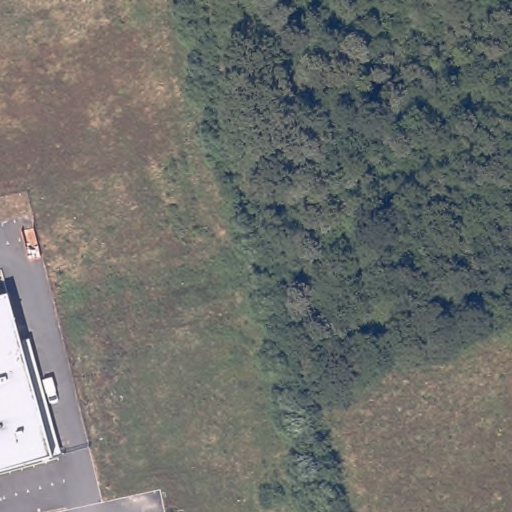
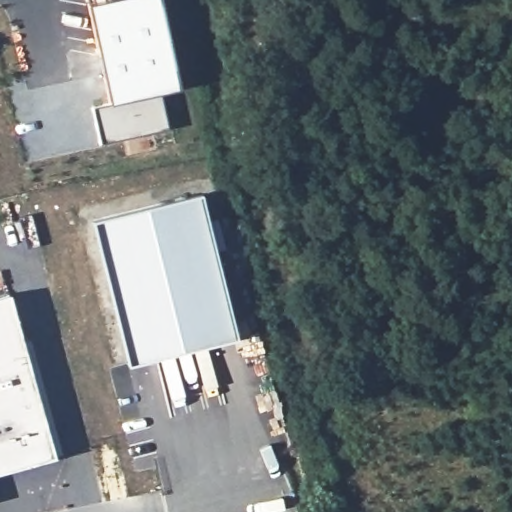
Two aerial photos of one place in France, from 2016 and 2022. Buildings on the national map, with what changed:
new [(159,0),(179,89),(160,93),(168,129),(99,144),(91,107),(109,103),(86,2),(96,0),(159,0)]
new [(200,189),(238,339),(126,366),(89,217),(200,189)]
unchanged [(0,473),(0,296),(9,294),(54,458),(0,473)]

